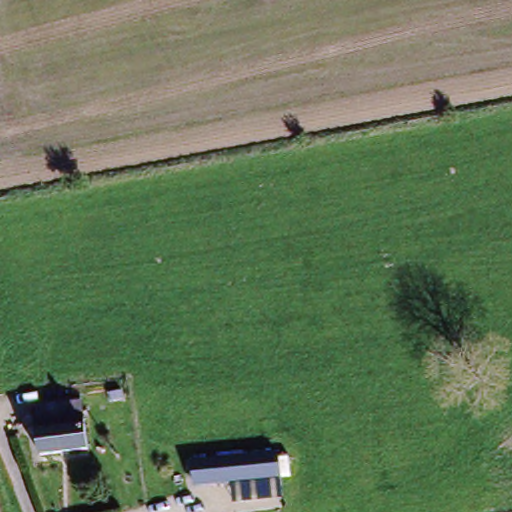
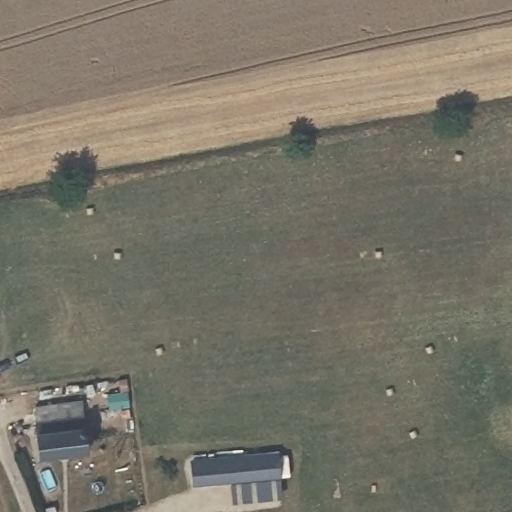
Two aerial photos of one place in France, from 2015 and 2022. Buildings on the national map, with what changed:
unchanged [(87,452),(42,458),(38,417),(83,412),(87,452)]
unchanged [(278,481),(196,488),(193,464),(274,457),(278,481)]

